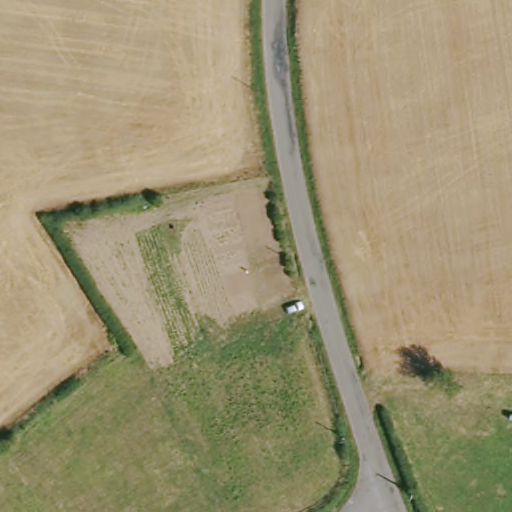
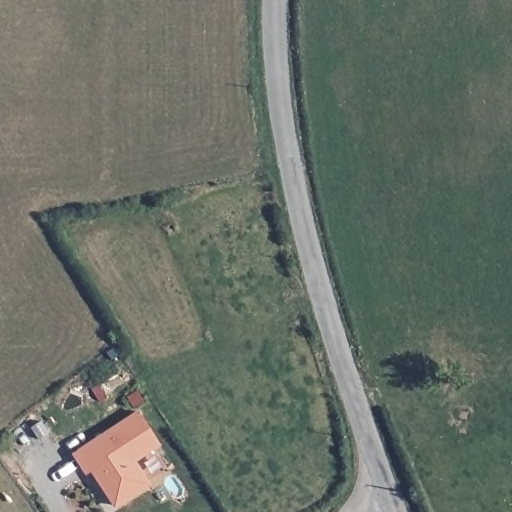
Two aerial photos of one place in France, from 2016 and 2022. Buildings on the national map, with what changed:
new [(136,460),(150,482),(116,506),(91,470),(85,473),(72,452),(138,410),(160,445),(136,460)]

